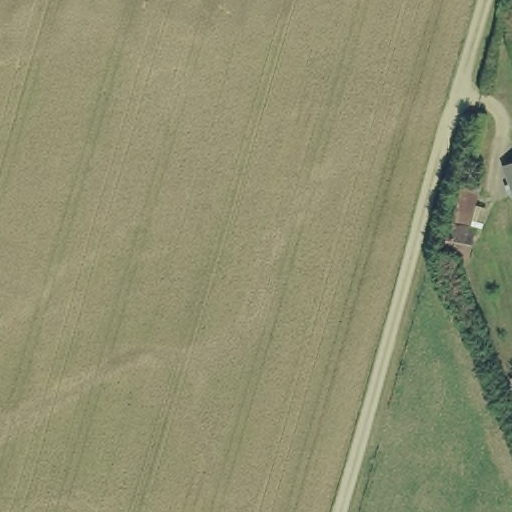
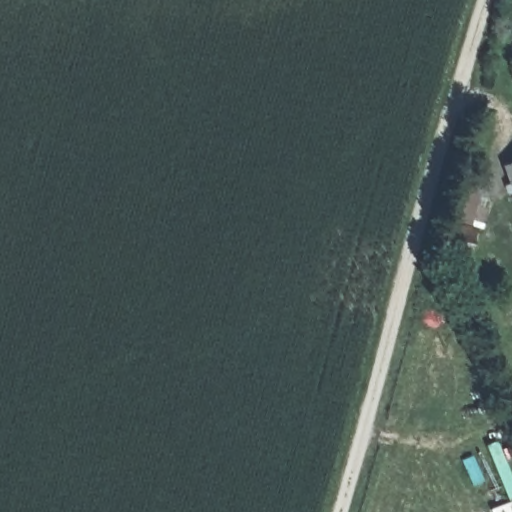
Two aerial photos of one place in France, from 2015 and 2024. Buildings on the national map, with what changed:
unchanged [(512,197),(500,166),(512,161),(512,197)]
unchanged [(482,185),(468,262),(443,258),(457,178),(482,185)]

